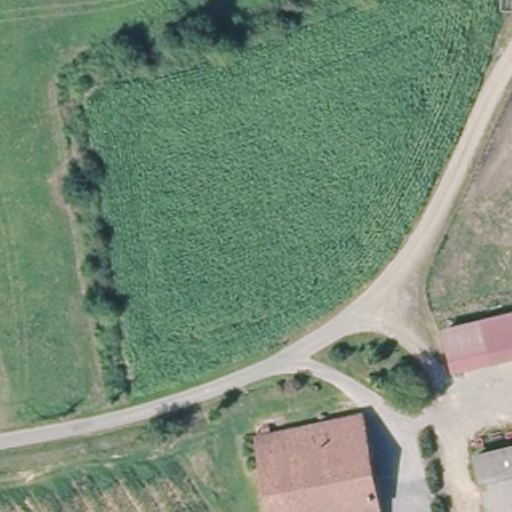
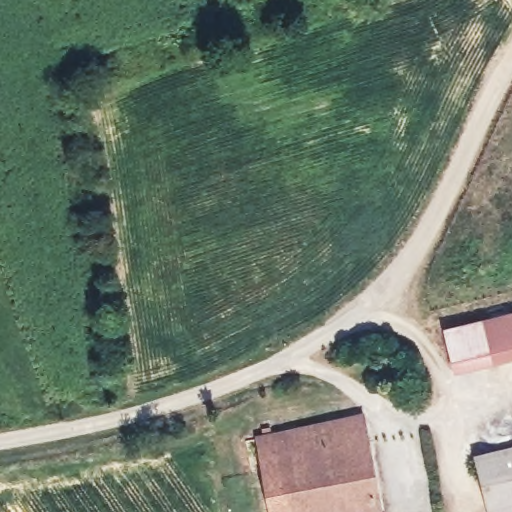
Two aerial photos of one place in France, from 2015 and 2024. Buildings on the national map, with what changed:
unchanged [(457,357),(448,320),(512,310),(512,347),(457,357)]
unchanged [(255,435),(356,412),(377,508),(378,512),(271,512),(255,435)]
unchanged [(476,445),(512,438),(512,512),(487,512),(476,445)]

